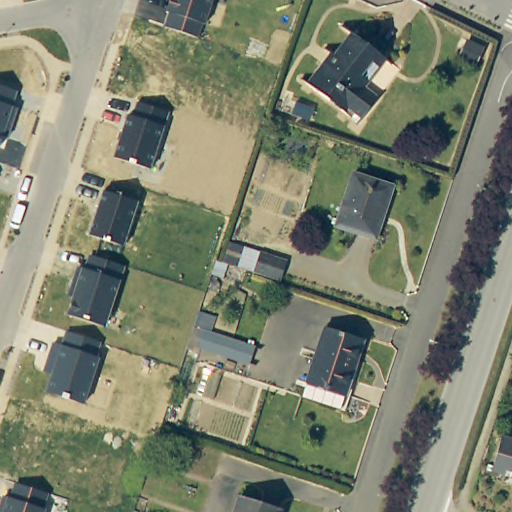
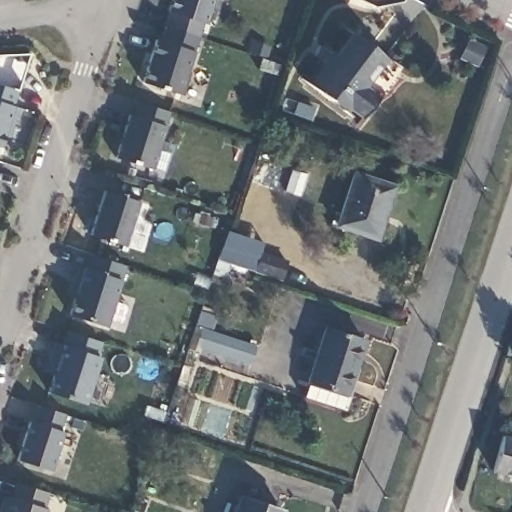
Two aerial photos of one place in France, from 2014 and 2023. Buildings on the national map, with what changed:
unchanged [(205,24),(201,23),(197,37),(165,26),(169,13),(165,11),(169,0),(212,0),(205,24)]
new [(197,37),(186,70),(190,71),(181,94),(140,82),(155,38),(159,40),(165,26),(197,37)]
unchanged [(374,45),(388,58),(402,69),(361,120),(344,108),(342,111),(309,82),(327,59),(332,63),(357,31),(374,45)]
unchanged [(17,90),(12,105),(17,107),(7,139),(2,137),(0,144),(0,85),(17,90)]
unchanged [(169,111),(164,127),(150,169),(113,158),(127,113),(133,115),(137,102),(169,111)]
unchanged [(378,175),(363,224),(362,228),(323,214),(338,162),(378,175)]
unchanged [(137,201),(123,246),(88,235),(104,190),(137,201)]
unchanged [(283,262),(277,281),(235,267),(242,249),(283,262)]
unchanged [(84,268),(89,254),(124,266),(121,280),(105,326),(67,314),(72,297),(67,295),(77,265),(84,268)]
unchanged [(357,332),(337,402),(300,390),(322,322),(357,332)]
unchanged [(254,342),(249,358),(197,341),(203,325),(254,342)]
unchanged [(100,342),(95,356),(100,357),(84,405),(45,393),(51,374),(43,371),(52,341),(62,345),(66,331),(100,342)]
new [(29,421),(32,422),(38,406),(64,414),(59,432),(62,432),(51,470),(19,461),(29,421)]
unchanged [(512,480),(490,473),(502,435),(512,438),(512,480)]
unchanged [(42,508),(46,509),(45,512),(0,512),(0,500),(2,494),(10,496),(16,483),(47,492),(42,508)]
unchanged [(278,512),(231,512),(237,492),(280,505),(278,512)]

